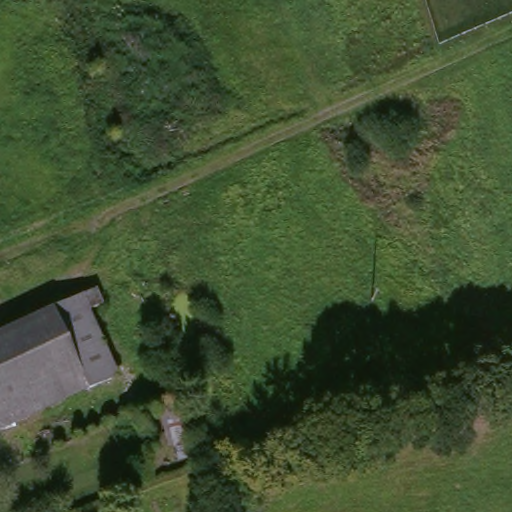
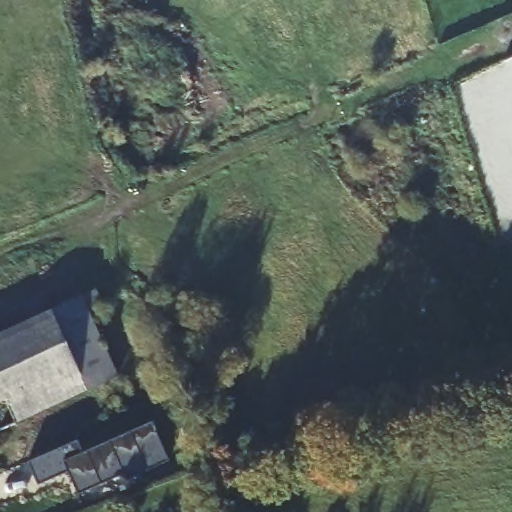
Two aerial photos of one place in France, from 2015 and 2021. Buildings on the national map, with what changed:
demolished [(94,180),(98,180),(102,181),(104,183),(104,187),(103,190),(99,192),(94,193),(91,180),(94,180)]
unchanged [(0,434),(0,335),(4,334),(89,295),(96,311),(83,316),(111,381),(25,420),(0,434)]
demolished [(170,395),(188,459),(166,466),(147,404),(170,395)]
new [(168,460),(125,478),(123,473),(77,494),(68,472),(37,485),(27,462),(76,439),(82,451),(151,420),(168,460)]

